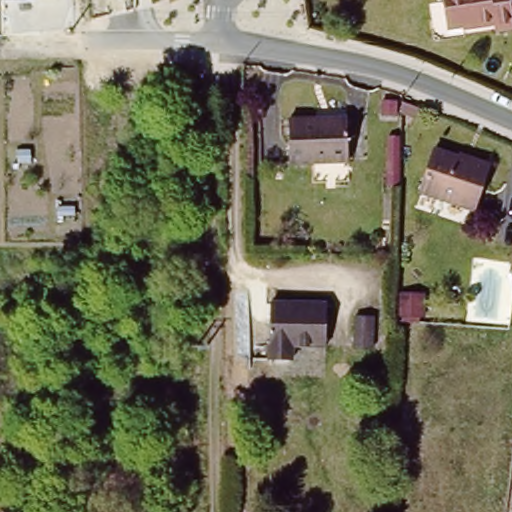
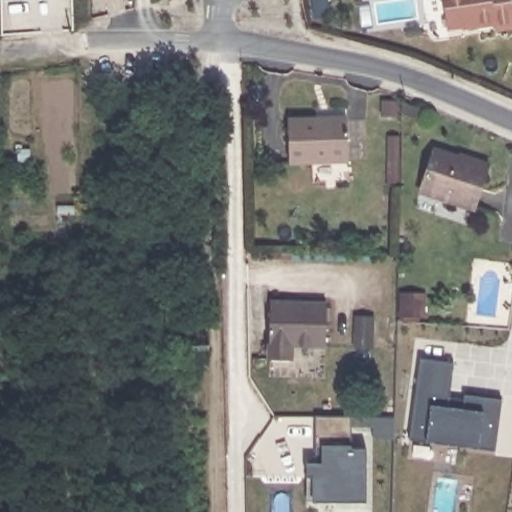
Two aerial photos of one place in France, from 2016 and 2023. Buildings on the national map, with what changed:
unchanged [(1,1),(1,0),(29,0),(1,1)]
unchanged [(443,0),(510,0),(512,12),(512,30),(493,32),(493,27),(463,32),(463,29),(447,31),(445,20),(443,0)]
unchanged [(353,166),(296,167),(295,124),(351,121),(353,166)]
unchanged [(481,216),(421,196),(435,149),(493,165),(481,216)]
unchanged [(270,360),(272,304),(327,305),(326,345),(293,345),(292,360),(270,360)]
new [(495,450),(478,447),(425,440),(411,438),(421,360),(454,365),(446,407),(463,409),(465,395),(502,400),(495,450)]
new [(313,501),(313,475),(305,475),(305,464),(314,465),(315,416),(351,417),(392,417),(392,437),(371,437),(371,425),(351,426),(352,446),(352,450),(367,450),(366,501),(313,501)]

